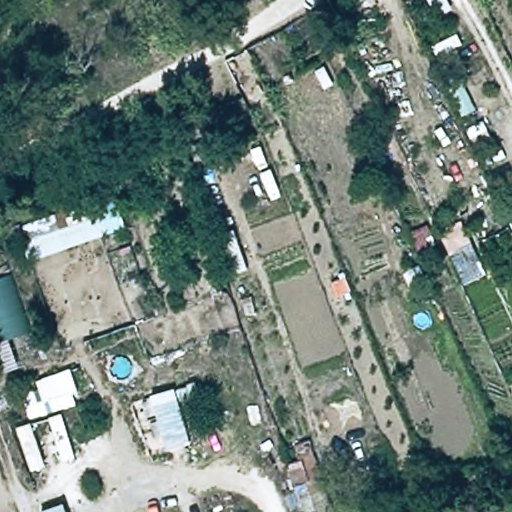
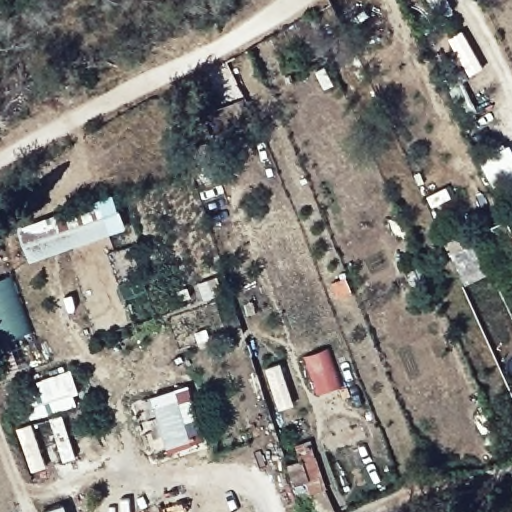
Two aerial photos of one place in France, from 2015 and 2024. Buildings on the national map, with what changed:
unchanged [(16,224),(110,188),(125,227),(27,265),(16,224)]
unchanged [(512,238),(512,246),(509,239),(512,238)]
unchanged [(145,406),(176,398),(191,451),(161,458),(145,406)]
unchanged [(60,512),(54,512),(60,510),(60,512)]

